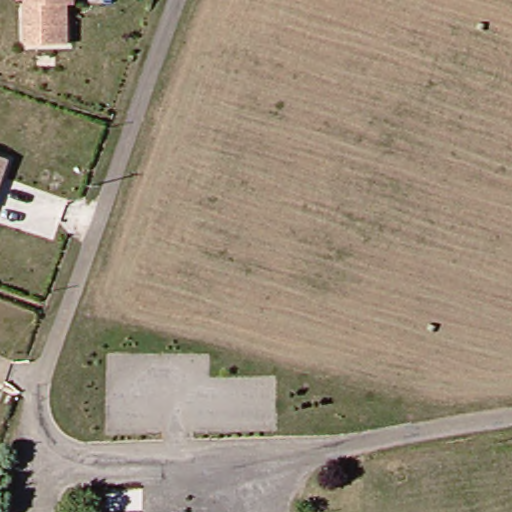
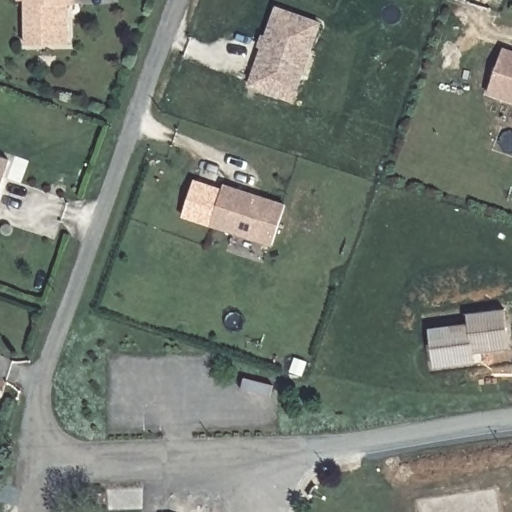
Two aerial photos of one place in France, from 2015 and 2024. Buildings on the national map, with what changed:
unchanged [(27,37),(27,0),(69,0),(70,36),(27,37)]
new [(275,5),(323,21),(294,103),(247,86),(275,5)]
new [(512,103),(487,94),(503,48),(512,51),(512,103)]
unchanged [(13,153),(0,192),(0,148),(13,153)]
new [(272,248),(209,228),(224,184),(286,204),(272,248)]
new [(511,349),(475,354),(477,364),(432,369),(426,330),(468,324),(467,314),(506,310),(511,349)]

